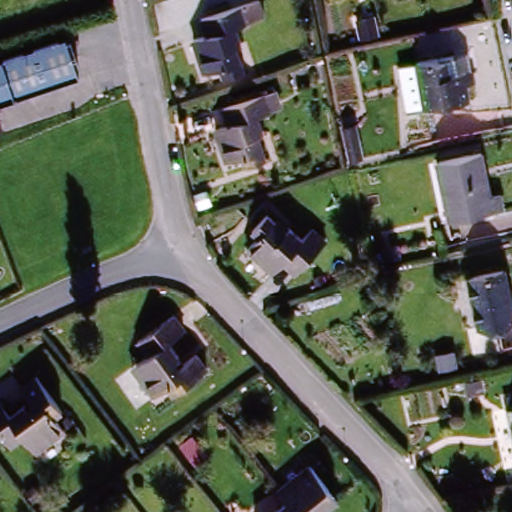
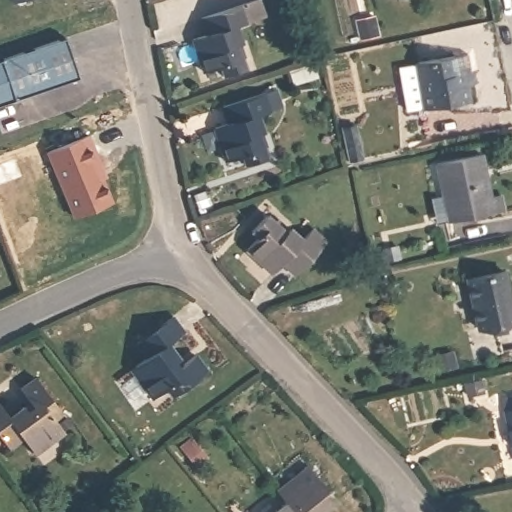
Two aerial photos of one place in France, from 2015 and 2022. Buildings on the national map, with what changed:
new [(16,5),(14,0),(31,0),(16,5)]
unchanged [(210,33),(206,22),(262,0),(268,15),(232,29),(243,59),(234,62),(238,72),(221,80),(216,68),(200,74),(188,43),(210,33)]
unchanged [(68,40),(80,77),(0,104),(0,63),(68,40)]
unchanged [(462,85),(466,100),(424,109),(414,64),(448,57),(463,54),(468,71),(472,83),(462,85)]
unchanged [(276,108),(258,114),(269,147),(263,150),(264,160),(246,165),(241,155),(227,159),(217,130),(235,123),(231,108),(271,95),(276,108)]
unchanged [(351,153),(338,156),(331,126),(344,123),(351,153)]
new [(91,137),(118,203),(76,220),(51,152),(91,137)]
unchanged [(483,153),(492,198),(501,196),(504,211),(453,221),(441,161),(483,153)]
unchanged [(268,215),(278,226),(283,222),(305,244),(320,230),(329,239),(299,269),(289,258),(271,273),(252,251),(263,242),(251,229),(268,215)]
unchanged [(465,274),(509,266),(512,284),(512,329),(477,335),(469,296),(465,274)]
unchanged [(149,361),(138,342),(175,319),(186,334),(172,343),(191,372),(201,366),(208,376),(174,397),(168,389),(153,395),(136,368),(149,361)]
unchanged [(4,409),(34,389),(28,380),(39,373),(61,405),(48,414),(56,427),(29,445),(21,431),(3,442),(0,437),(0,403),(4,409)]
unchanged [(512,412),(512,421),(510,412),(512,412)]
unchanged [(341,495),(326,512),(297,512),(295,509),(281,493),(314,465),(341,495)]
unchanged [(297,512),(291,512),(295,509),(297,512)]

